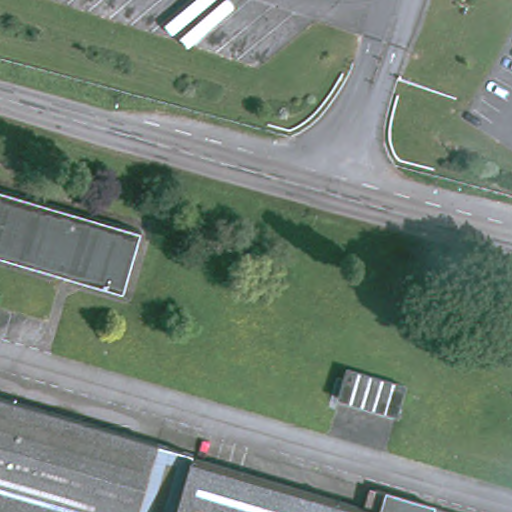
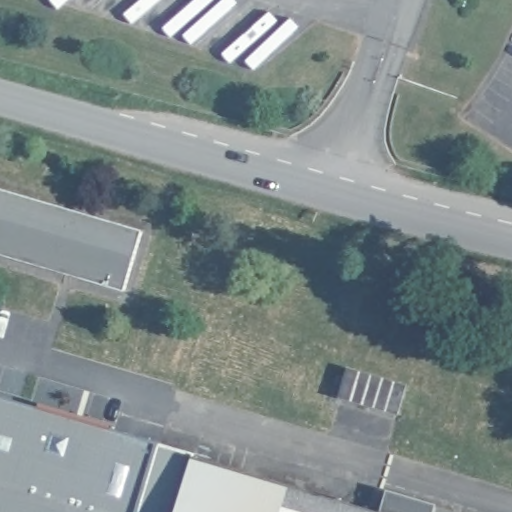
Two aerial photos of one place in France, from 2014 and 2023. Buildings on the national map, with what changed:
unchanged [(0,189),(142,231),(123,292),(0,256),(0,189)]
unchanged [(349,370),(406,386),(397,415),(340,398),(349,370)]
unchanged [(197,458),(246,472),(375,511),(381,490),(455,512),(0,512),(0,396),(199,454),(197,458)]
unchanged [(381,490),(375,511),(246,472),(252,452),(381,490)]

